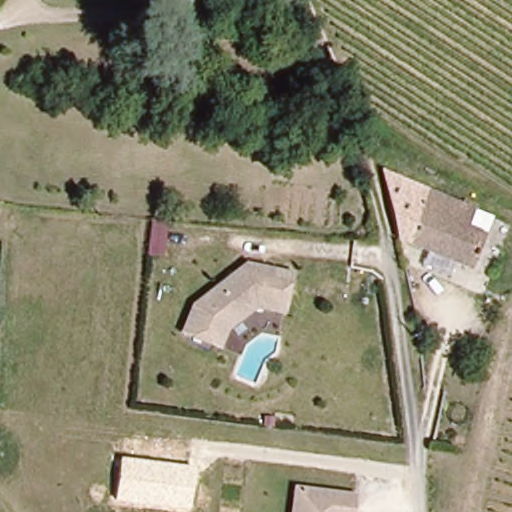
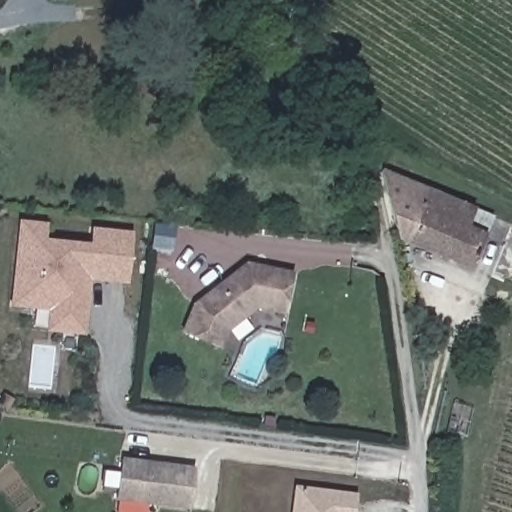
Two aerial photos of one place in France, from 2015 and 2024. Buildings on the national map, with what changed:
unchanged [(380,164),(474,205),(468,224),(493,236),(479,267),(394,230),(380,164)]
new [(46,332),(49,311),(10,306),(20,220),(46,222),(45,238),(90,242),(92,227),(134,231),(129,284),(91,280),(84,334),(46,332)]
unchanged [(188,306),(239,265),(284,276),(277,315),(249,309),(220,331),(214,348),(176,334),(188,306)]
unchanged [(189,511),(114,500),(121,457),(196,467),(189,511)]
unchanged [(310,493),(358,500),(356,512),(296,512),(300,492),(310,493)]

